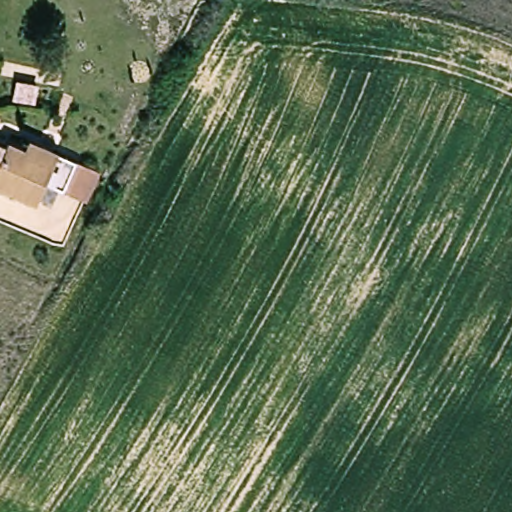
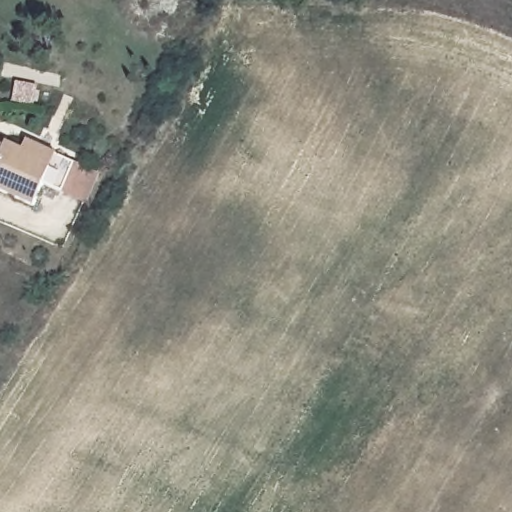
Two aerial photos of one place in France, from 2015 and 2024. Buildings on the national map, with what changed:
unchanged [(48,186),(39,208),(0,192),(0,166),(9,140),(26,150),(30,138),(103,170),(89,200),(48,186)]

